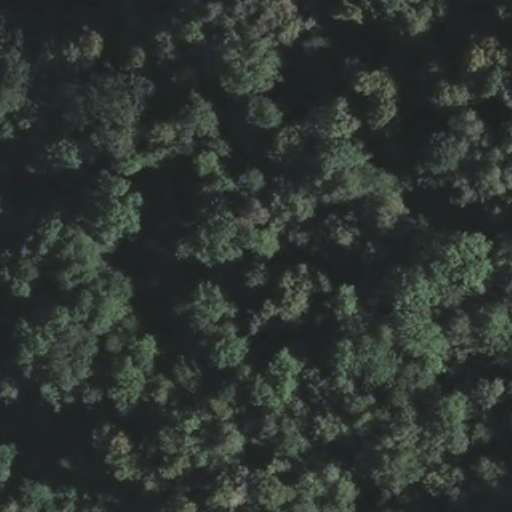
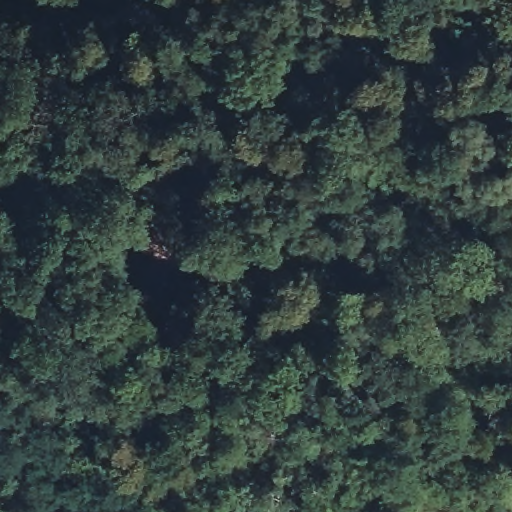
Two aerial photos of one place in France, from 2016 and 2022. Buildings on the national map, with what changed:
unchanged [(148,259),(136,249),(153,223),(186,247),(161,288),(139,275),(148,259)]
unchanged [(119,304),(159,304),(161,360),(118,359),(119,304)]

